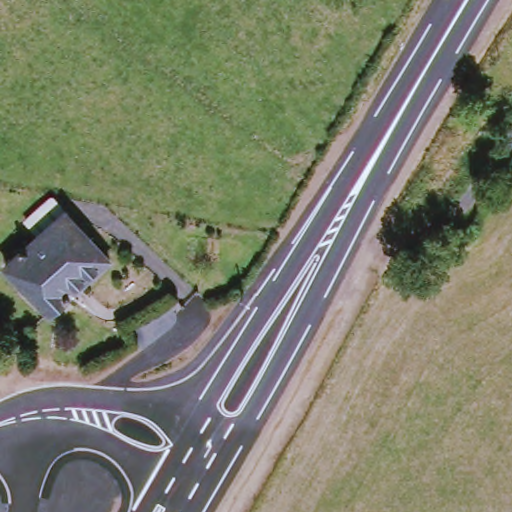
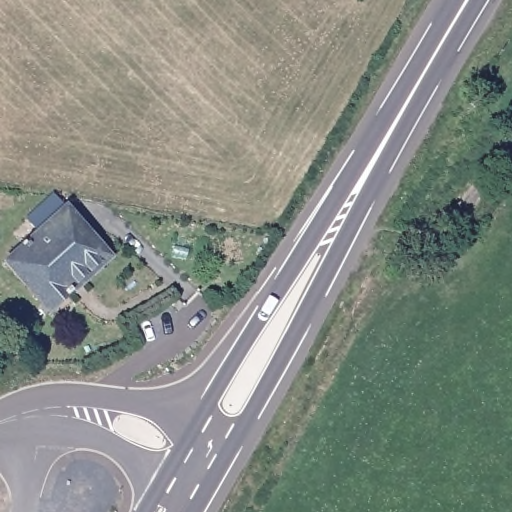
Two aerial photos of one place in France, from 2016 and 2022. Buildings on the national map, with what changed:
unchanged [(34,235),(25,220),(52,198),(105,262),(45,312),(1,261),(34,235)]

